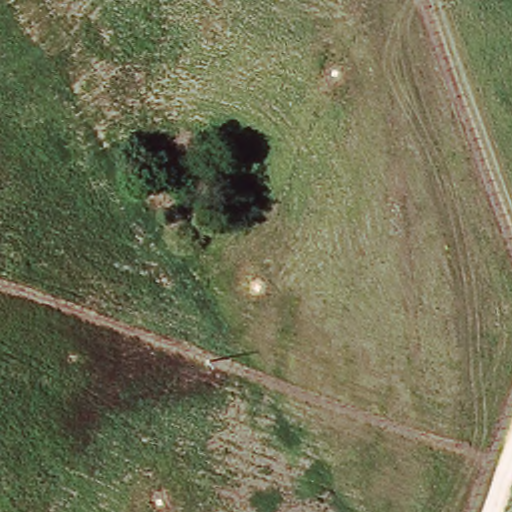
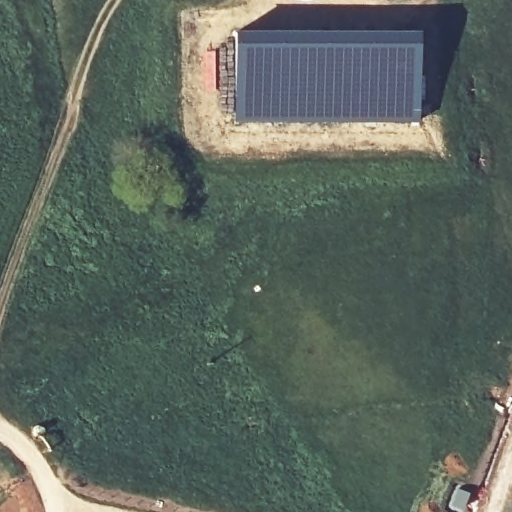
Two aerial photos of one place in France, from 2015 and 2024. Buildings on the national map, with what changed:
new [(233,33),(417,31),(416,121),(233,122),(233,33)]

